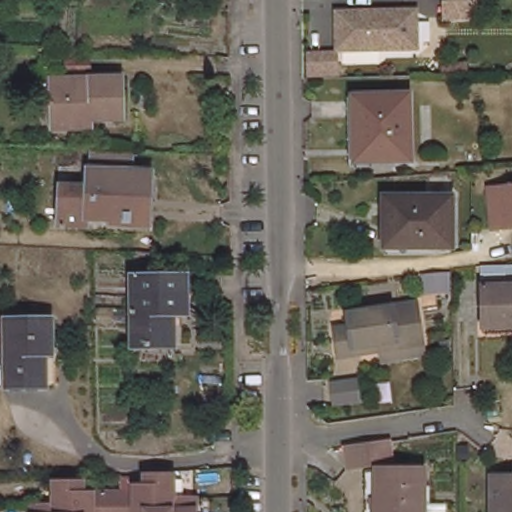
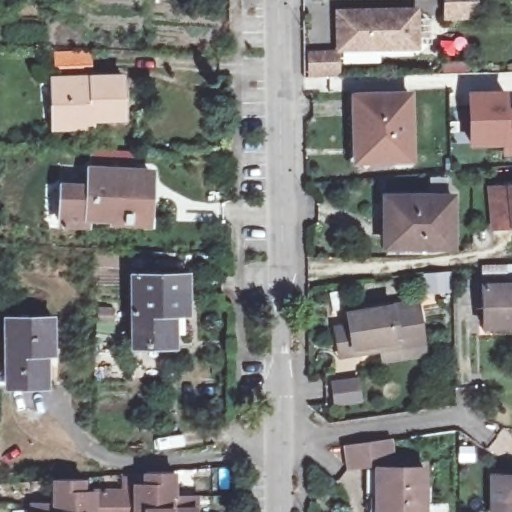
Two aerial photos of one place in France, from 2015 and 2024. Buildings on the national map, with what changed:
unchanged [(477,17),(447,17),(447,0),(477,0),(477,17)]
unchanged [(345,42),(345,6),(407,4),(422,4),(422,10),(423,42),(345,42)]
unchanged [(55,121),(55,110),(54,89),(50,89),(50,68),(58,68),(57,43),(89,42),(89,67),(123,66),(124,108),(90,109),(90,119),(55,121)]
unchanged [(342,51),(342,68),(315,69),(315,52),(342,51)]
new [(470,91),(507,90),(508,107),(512,107),(512,156),(505,156),(505,145),(472,146),(470,91)]
unchanged [(356,149),(355,94),(410,93),(412,159),(376,159),(356,160),(356,149)]
unchanged [(150,223),(134,222),(134,226),(90,223),(90,229),(62,227),(64,187),(90,188),(91,174),(93,174),(94,156),(140,159),(140,177),(152,178),(150,223)]
unchanged [(512,226),(497,227),(494,188),(512,186),(512,226)]
unchanged [(387,244),(388,195),(453,195),(452,244),(387,244)]
unchanged [(135,345),(135,275),(192,275),(190,313),(174,313),(173,345),(135,345)]
unchanged [(485,320),(485,285),(512,284),(512,333),(485,334),(485,320)]
unchanged [(352,324),(350,312),(419,300),(427,352),(387,359),(385,349),(342,357),(337,327),(352,324)]
unchanged [(8,386),(7,318),(55,318),(55,354),(45,354),(46,386),(8,386)]
unchanged [(360,381),(363,398),(340,402),(337,385),(360,381)]
unchanged [(394,445),(397,468),(353,474),(350,451),(394,445)]
unchanged [(54,504),(54,479),(70,478),(82,476),(82,491),(121,490),(133,490),(134,482),(145,482),(145,471),(174,470),(174,496),(196,496),(196,512),(32,512),(32,504),(54,504)]
unchanged [(512,473),(512,512),(494,512),(494,472),(512,473)]
unchanged [(380,512),(380,501),(370,501),(370,474),(387,474),(429,474),(429,512),(380,512)]

